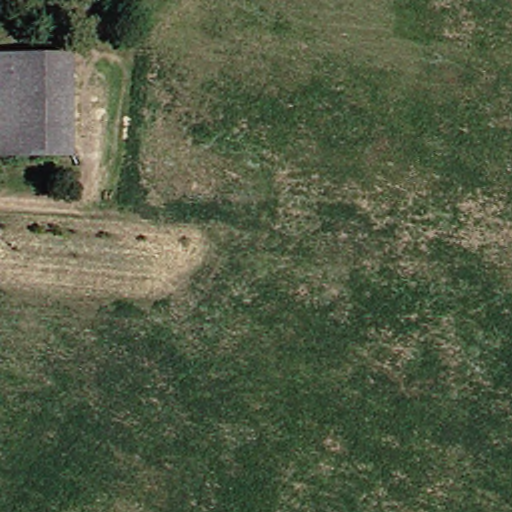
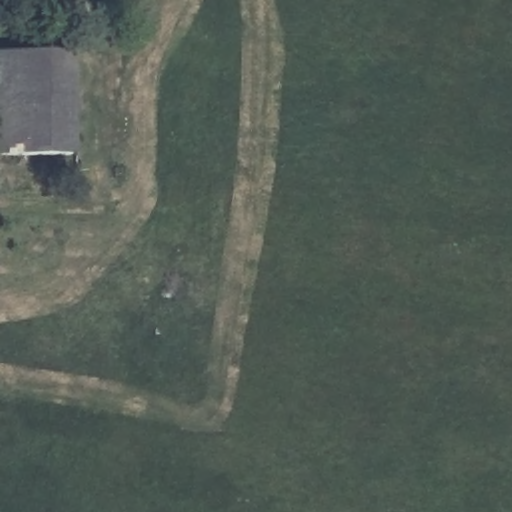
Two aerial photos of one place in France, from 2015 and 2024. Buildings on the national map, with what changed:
unchanged [(64,155),(0,153),(0,54),(66,57),(64,155)]

